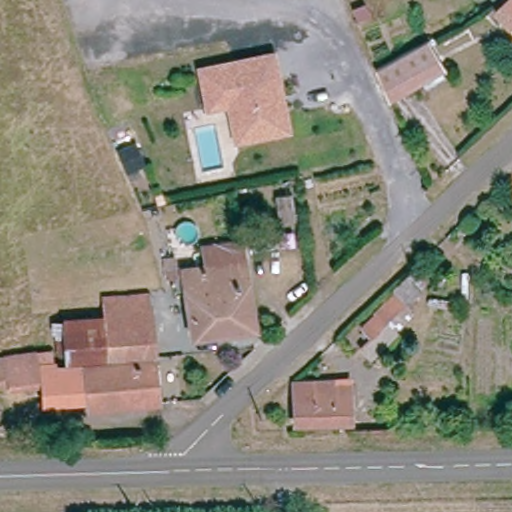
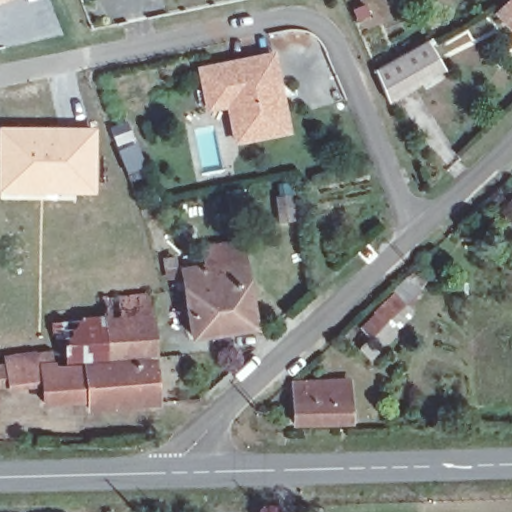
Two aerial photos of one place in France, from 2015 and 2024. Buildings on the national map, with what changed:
new [(0,3),(0,0),(8,0),(0,3)]
unchanged [(505,2),(506,0),(512,0),(512,11),(505,2)]
unchanged [(506,30),(512,24),(512,36),(506,30)]
unchanged [(427,41),(441,74),(380,106),(366,74),(427,41)]
unchanged [(225,108),(204,111),(196,66),(275,49),(290,132),(234,145),(225,108)]
new [(94,194),(0,196),(0,125),(96,126),(94,194)]
new [(130,127),(150,176),(131,184),(112,134),(130,127)]
unchanged [(305,194),(309,220),(293,222),(290,196),(305,194)]
unchanged [(182,273),(205,270),(202,250),(240,245),(252,332),(191,340),(182,273)]
unchanged [(164,263),(174,262),(176,280),(166,280),(164,263)]
unchanged [(353,352),(366,340),(356,328),(405,273),(422,293),(413,305),(418,309),(368,366),(353,352)]
unchanged [(104,316),(104,296),(153,295),(155,350),(105,350),(104,316)]
unchanged [(104,316),(105,350),(55,351),(54,316),(104,316)]
unchanged [(1,354),(55,351),(105,350),(155,350),(159,403),(40,405),(42,386),(11,386),(10,383),(1,382),(1,354)]
unchanged [(287,426),(288,378),(341,376),(342,425),(342,436),(322,437),(323,425),(287,426)]

